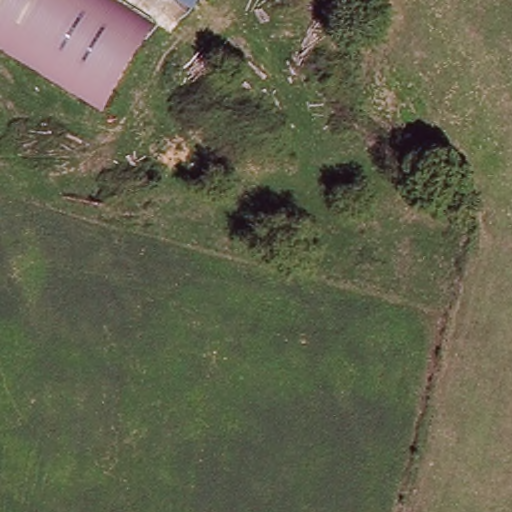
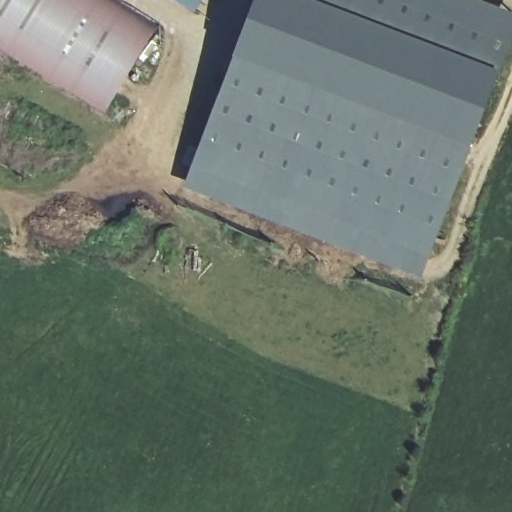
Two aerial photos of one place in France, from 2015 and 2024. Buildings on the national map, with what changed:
unchanged [(155,25),(105,107),(0,46),(0,0),(119,0),(157,22),(155,25)]
unchanged [(175,0),(201,0),(195,12),(175,0)]
new [(184,189),(255,0),(479,0),(512,13),(512,41),(422,280),(184,189)]

